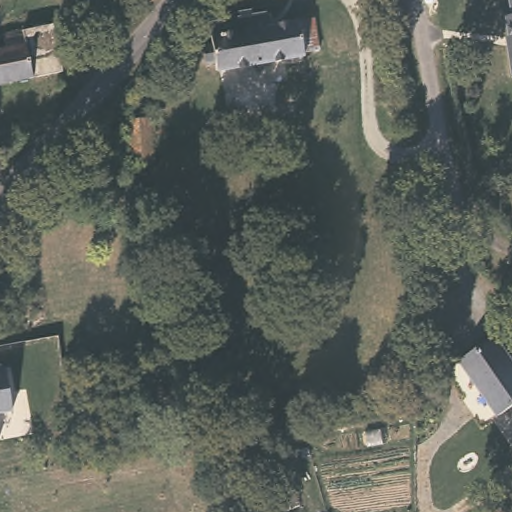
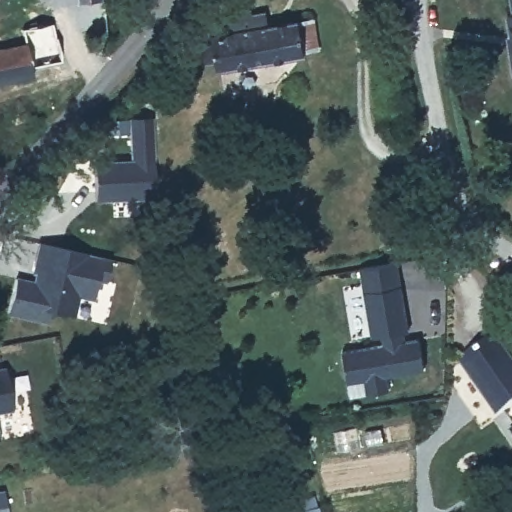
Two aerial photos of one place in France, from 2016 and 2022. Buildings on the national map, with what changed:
unchanged [(261,62),(220,70),(219,62),(207,64),(204,46),(215,42),(210,20),(235,15),(234,9),(251,7),(261,62)]
unchanged [(265,8),(268,21),(300,15),(313,12),(320,45),(306,49),(306,54),(261,62),(251,7),(255,10),(265,8)]
unchanged [(510,9),(512,9),(512,23),(510,9)]
unchanged [(0,78),(0,45),(9,44),(7,36),(57,29),(61,68),(0,78)]
unchanged [(156,157),(135,159),(131,115),(151,114),(156,157)]
new [(92,162),(135,159),(153,157),(155,197),(95,201),(92,162)]
new [(15,278),(32,280),(34,271),(30,271),(36,241),(86,252),(86,254),(110,259),(105,283),(96,281),(91,300),(78,298),(73,316),(47,311),(45,323),(6,315),(15,278)]
new [(382,343),(381,335),(370,336),(357,268),(397,261),(408,331),(403,332),(405,340),(418,338),(423,371),(386,376),(388,390),(348,397),(340,351),(382,343)]
unchanged [(499,338),(512,357),(512,406),(498,415),(460,361),(499,338)]
unchanged [(11,410),(0,413),(0,370),(4,370),(11,410)]
new [(512,428),(512,436),(508,431),(512,428)]

